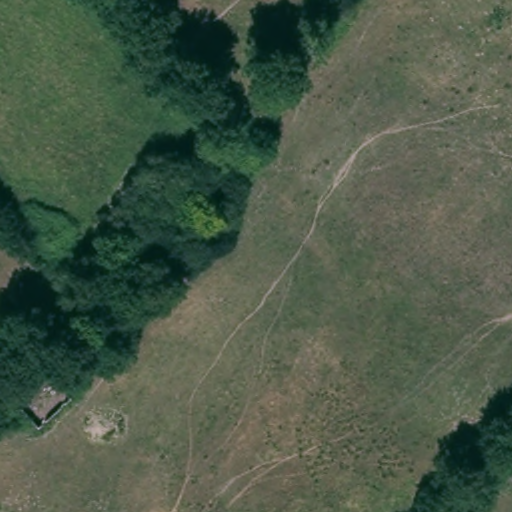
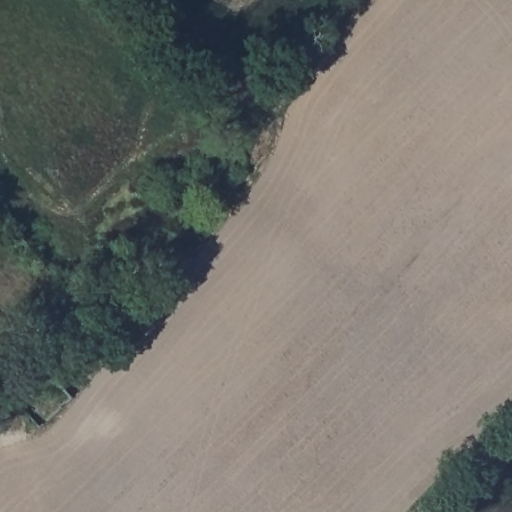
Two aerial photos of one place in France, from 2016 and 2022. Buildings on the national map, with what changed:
unchanged [(45,380),(54,388),(20,425),(1,407),(35,371),(45,380)]

